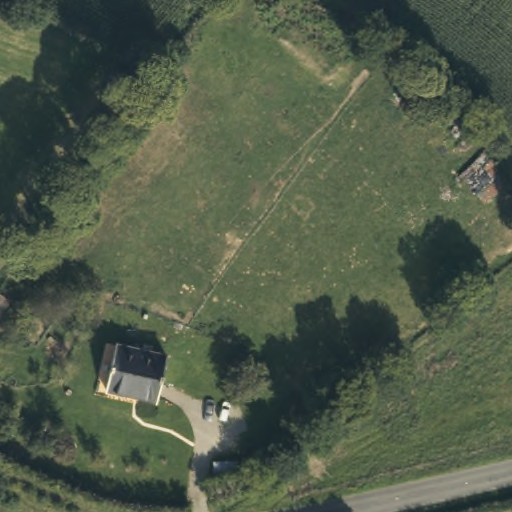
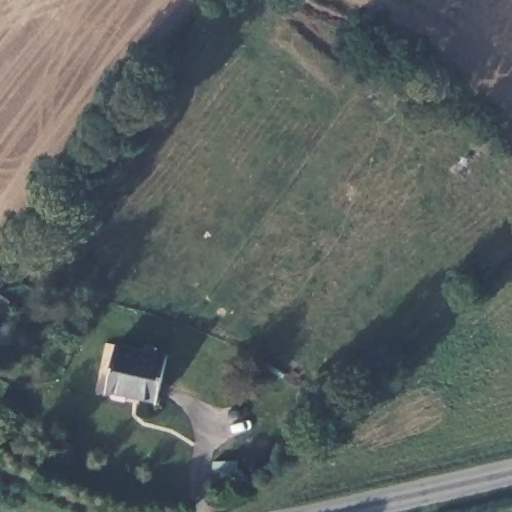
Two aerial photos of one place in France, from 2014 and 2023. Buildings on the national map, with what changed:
unchanged [(154,395),(106,385),(116,341),(164,352),(154,395)]

